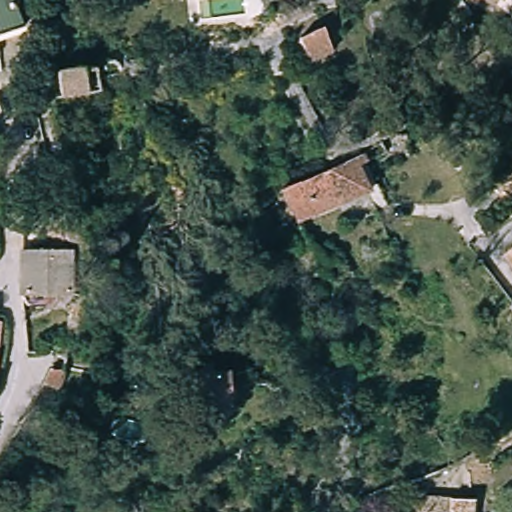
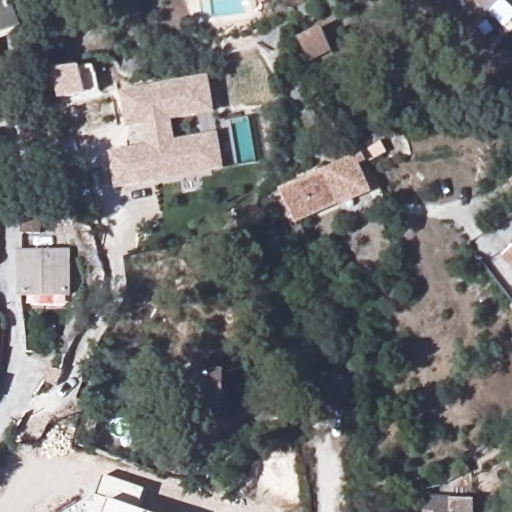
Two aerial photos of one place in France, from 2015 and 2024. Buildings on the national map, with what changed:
unchanged [(0,36),(0,0),(6,0),(19,26),(0,36)]
unchanged [(251,0),(268,0),(255,7),(251,0)]
unchanged [(467,0),(479,0),(473,6),(467,0)]
unchanged [(314,27),(327,50),(310,61),(299,37),(314,27)]
unchanged [(85,76),(90,97),(51,104),(48,82),(85,76)]
new [(173,119),(178,140),(148,144),(145,125),(128,127),(121,91),(211,76),(217,111),(173,119)]
new [(115,189),(108,151),(148,144),(178,140),(221,133),(227,170),(115,189)]
unchanged [(264,197),(361,155),(370,153),(375,164),(349,177),(360,199),(286,231),(264,197)]
unchanged [(58,222),(58,232),(57,245),(35,244),(34,221),(58,222)]
unchanged [(70,301),(31,301),(16,300),(17,268),(17,258),(30,258),(70,259),(70,301)]
unchanged [(509,262),(512,259),(512,265),(509,262)]
unchanged [(188,407),(188,382),(206,383),(206,372),(223,373),(221,382),(231,382),(231,408),(188,407)]
new [(148,490),(142,511),(145,512),(70,512),(99,495),(105,476),(148,490)]
unchanged [(474,500),(471,512),(417,512),(421,492),(474,500)]

